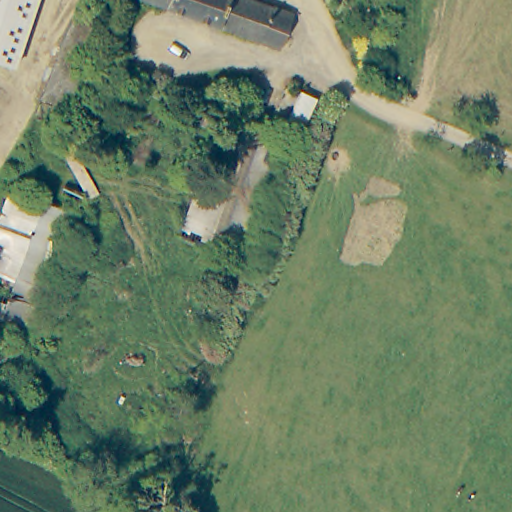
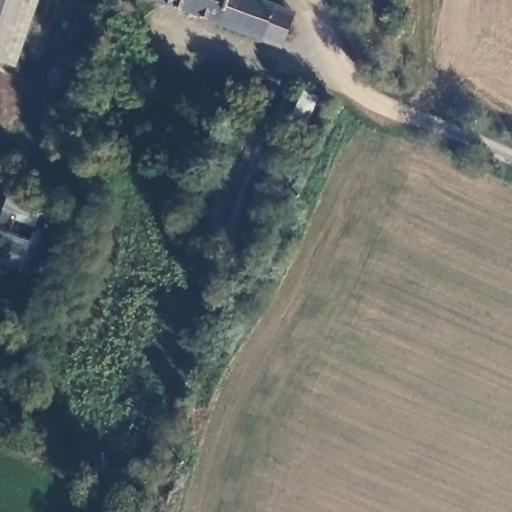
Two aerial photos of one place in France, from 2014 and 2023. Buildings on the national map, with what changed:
unchanged [(0,64),(0,0),(31,0),(34,1),(10,67),(0,64)]
unchanged [(31,0),(34,0),(34,1),(31,0)]
unchanged [(40,104),(70,32),(84,0),(98,0),(55,110),(40,104)]
unchanged [(65,114),(55,110),(98,0),(108,0),(110,1),(65,114)]
unchanged [(277,47),(154,0),(248,0),(290,17),(277,47)]
unchanged [(197,189),(225,123),(249,132),(222,198),(197,189)]
unchanged [(283,147),(242,254),(225,247),(236,204),(222,198),(249,132),(283,147)]
unchanged [(197,189),(222,198),(236,204),(225,247),(180,231),(197,189)]
unchanged [(26,330),(0,319),(0,212),(9,192),(70,219),(26,330)]
unchanged [(0,362),(0,350),(5,352),(0,362)]

